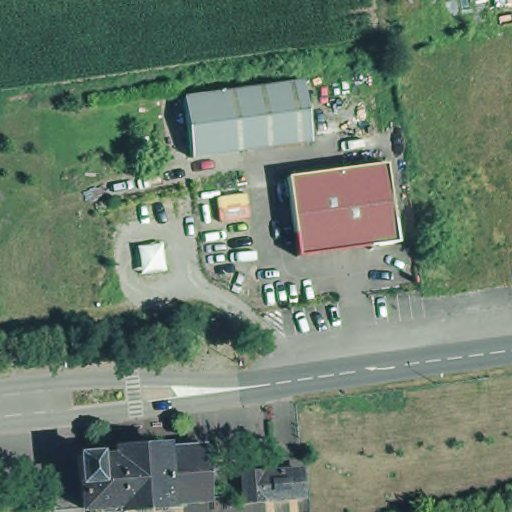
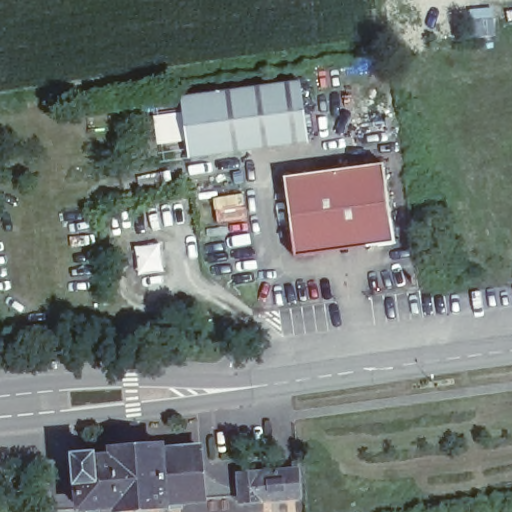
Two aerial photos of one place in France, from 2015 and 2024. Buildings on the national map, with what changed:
unchanged [(297,82),(298,89),(306,143),(187,160),(180,107),(178,99),(297,82)]
unchanged [(386,160),(390,184),(397,239),(299,253),(291,198),(288,174),(386,160)]
unchanged [(157,245),(165,301),(133,306),(126,250),(157,245)]
unchanged [(102,452),(103,456),(121,455),(121,448),(168,445),(169,447),(205,445),(210,498),(174,501),(175,504),(125,507),(125,505),(85,507),(83,481),(81,481),(80,454),(102,452)]
unchanged [(265,473),(265,476),(303,472),(305,498),(267,502),(267,503),(246,505),(245,476),(265,473)]

